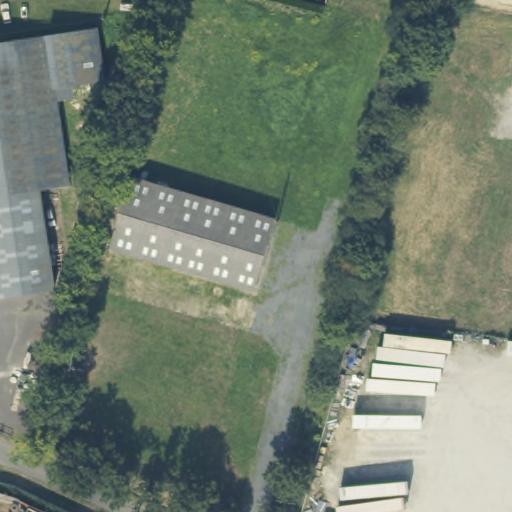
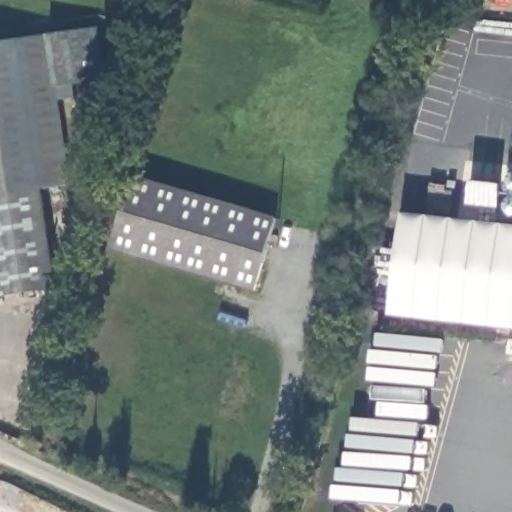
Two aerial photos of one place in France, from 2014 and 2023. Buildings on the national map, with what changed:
unchanged [(103,79),(54,86),(69,185),(39,189),(54,290),(0,298),(0,43),(96,29),(103,79)]
unchanged [(131,176),(276,219),(255,290),(110,248),(131,176)]
new [(388,317),(402,214),(512,226),(512,330),(388,317)]

